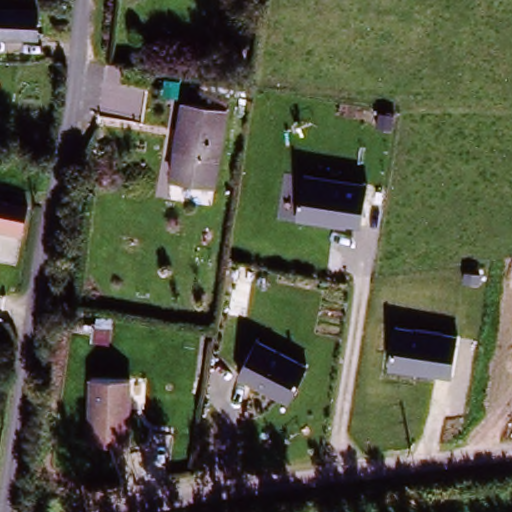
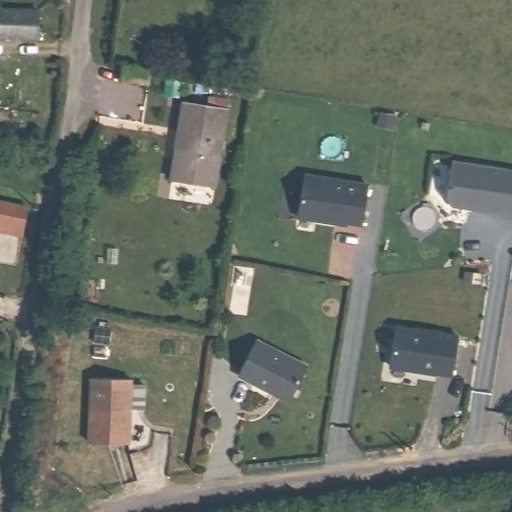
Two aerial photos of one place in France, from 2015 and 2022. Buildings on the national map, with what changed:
unchanged [(61,41),(0,37),(0,14),(62,17),(61,41)]
unchanged [(149,62),(147,76),(115,71),(117,57),(149,62)]
unchanged [(212,107),(214,99),(230,102),(217,190),(171,182),(184,102),(212,107)]
new [(512,169),(512,215),(500,214),(500,210),(449,202),(445,197),(450,160),(512,169)]
unchanged [(304,172),(367,182),(360,227),(297,217),(304,172)]
unchanged [(27,210),(22,229),(0,225),(0,204),(27,210)]
unchanged [(397,324),(457,333),(452,375),(390,366),(397,324)]
unchanged [(307,366),(288,405),(238,377),(258,341),(307,366)]
unchanged [(94,377),(130,381),(125,445),(88,443),(94,377)]

